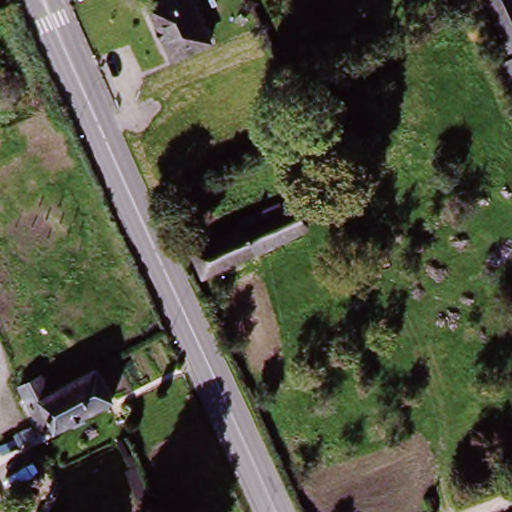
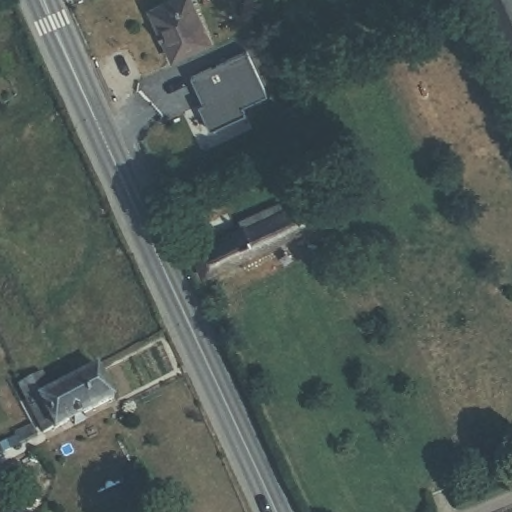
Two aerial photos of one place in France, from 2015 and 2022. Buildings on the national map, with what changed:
unchanged [(209,44),(169,61),(147,11),(174,0),(190,0),(209,44)]
demolished [(243,29),(225,34),(216,0),(236,0),(243,29)]
new [(273,19),(255,24),(249,0),(269,0),(273,19)]
unchanged [(512,53),(486,0),(512,0),(512,53)]
new [(246,53),(267,96),(242,108),(246,115),(210,131),(198,107),(203,105),(190,78),(246,53)]
unchanged [(512,56),(512,86),(502,62),(512,56)]
unchanged [(306,227),(207,274),(195,246),(245,222),(247,226),(294,202),(306,227)]
unchanged [(41,430),(17,385),(43,372),(50,388),(97,364),(112,395),(41,430)]

